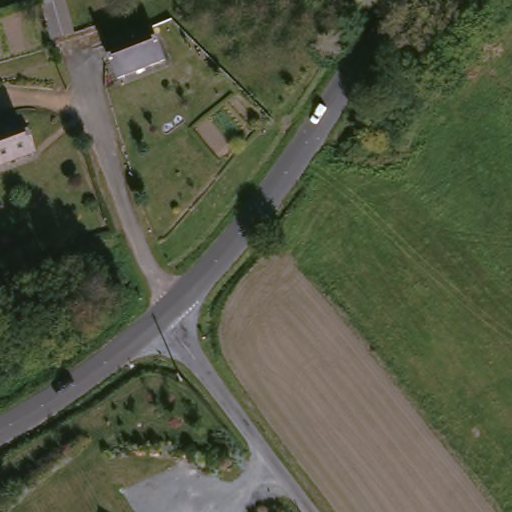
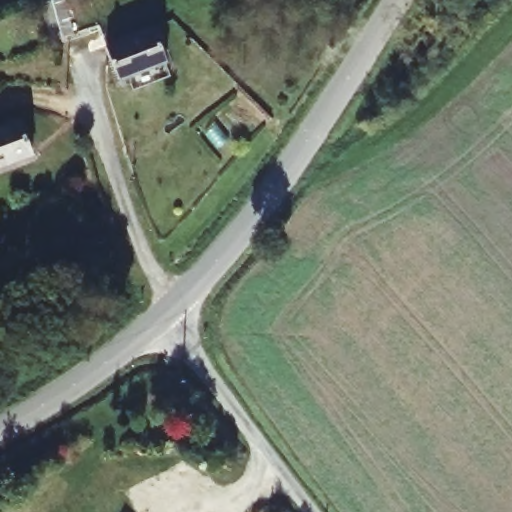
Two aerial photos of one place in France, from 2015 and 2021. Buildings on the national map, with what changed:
unchanged [(55,41),(44,5),(59,0),(64,0),(75,35),(55,41)]
unchanged [(159,22),(172,57),(124,75),(111,41),(159,22)]
unchanged [(37,155),(0,168),(0,129),(25,120),(37,155)]

